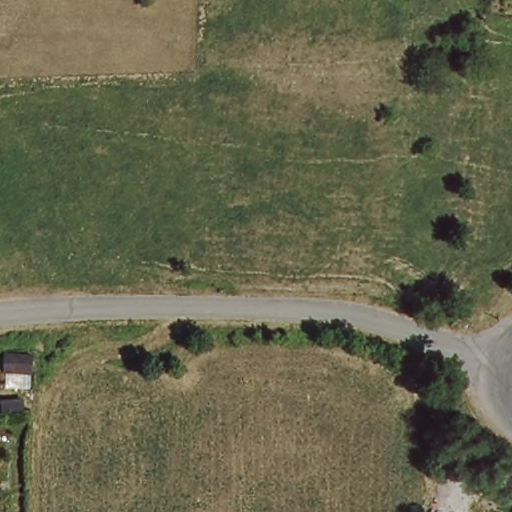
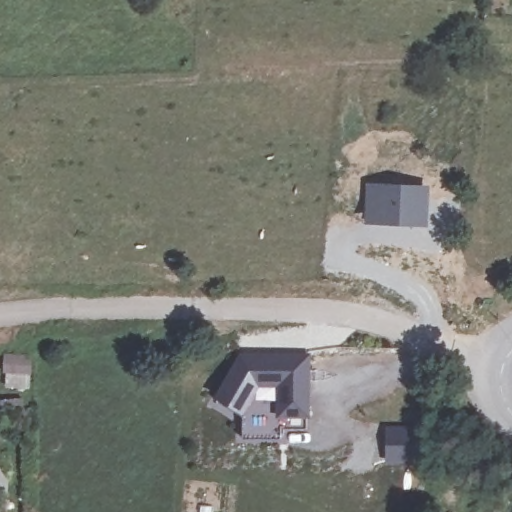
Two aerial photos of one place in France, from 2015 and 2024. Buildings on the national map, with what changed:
new [(365,182),(430,185),(428,227),(364,224),(365,182)]
new [(244,416),(213,397),(240,353),(312,354),(311,418),(307,418),(307,428),(281,428),(281,439),(244,438),(244,416)]
unchanged [(20,383),(0,381),(0,363),(21,365),(20,383)]

